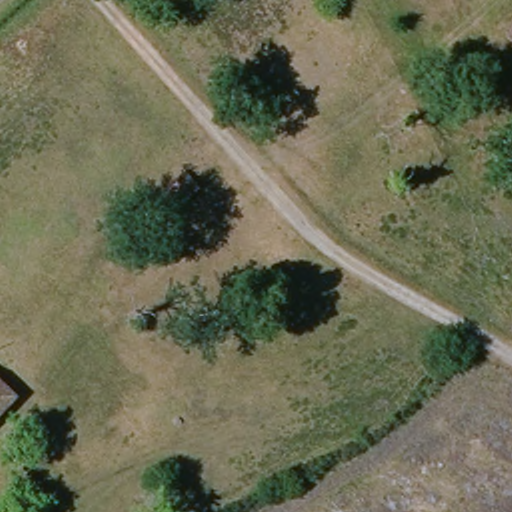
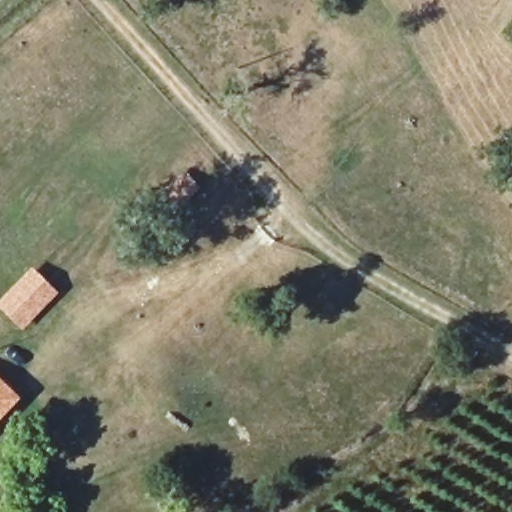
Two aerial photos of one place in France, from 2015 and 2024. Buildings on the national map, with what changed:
unchanged [(196,167),(201,189),(174,195),(170,174),(196,167)]
new [(32,266),(59,292),(24,327),(0,304),(0,299),(32,266)]
unchanged [(15,368),(7,382),(28,398),(0,432),(0,354),(15,368)]

